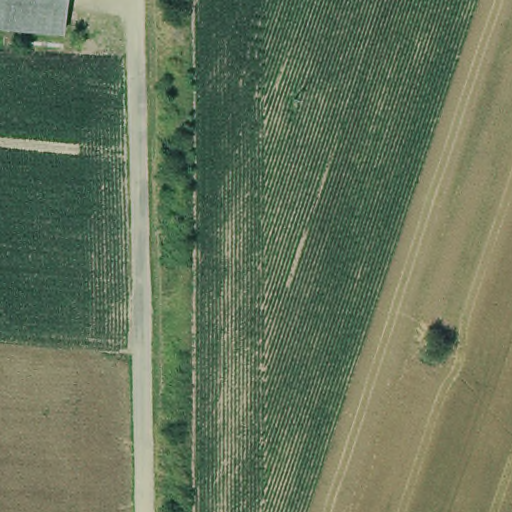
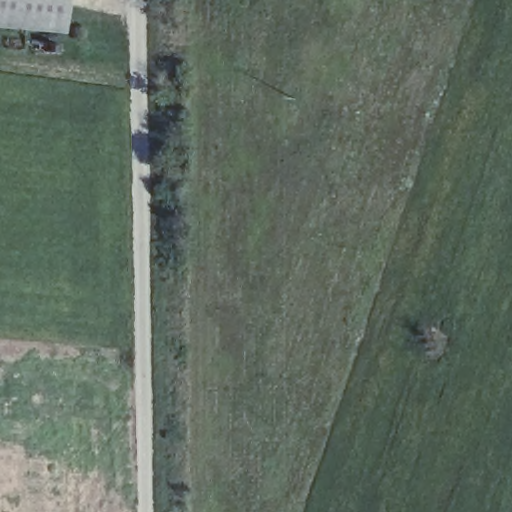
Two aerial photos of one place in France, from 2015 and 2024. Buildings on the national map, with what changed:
unchanged [(0,23),(0,0),(59,0),(57,28),(0,23)]

